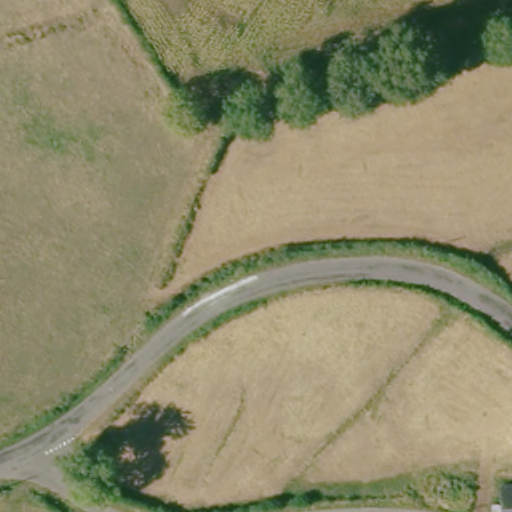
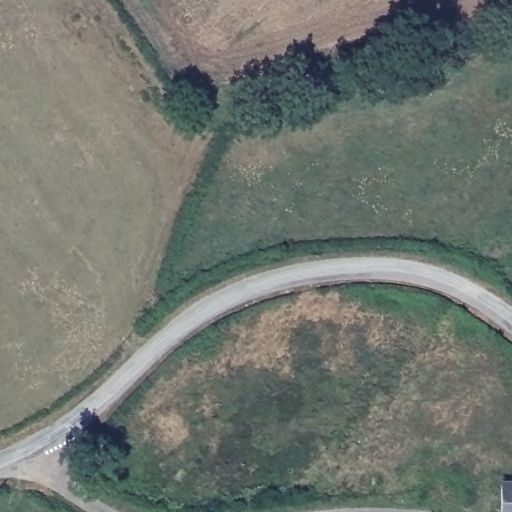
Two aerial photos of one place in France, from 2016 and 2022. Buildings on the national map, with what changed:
unchanged [(509,508),(508,486),(512,486),(512,512),(499,512),(499,509),(509,508)]

